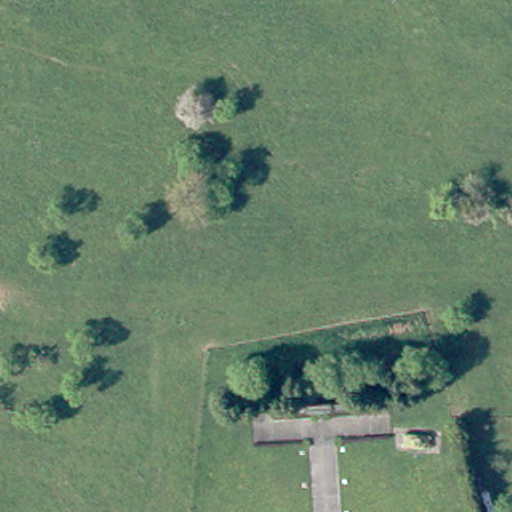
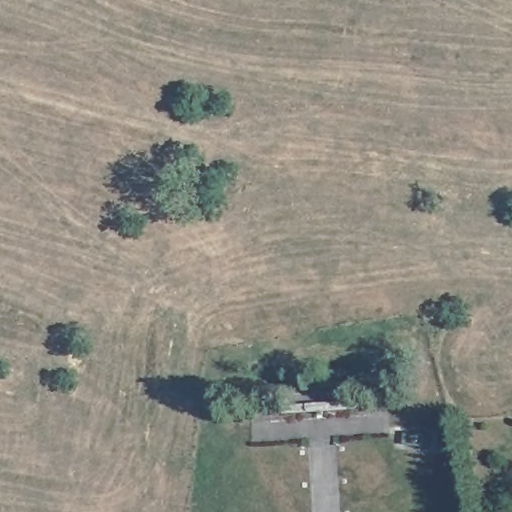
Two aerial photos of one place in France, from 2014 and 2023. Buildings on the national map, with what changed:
unchanged [(205,167),(204,181),(189,180),(190,166),(205,167)]

